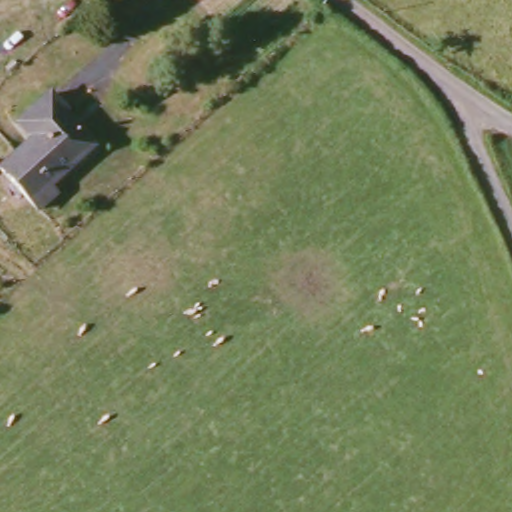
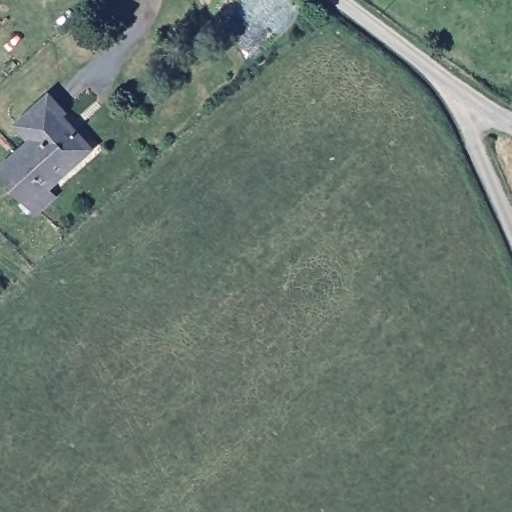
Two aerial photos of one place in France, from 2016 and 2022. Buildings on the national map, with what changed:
unchanged [(72,115),(69,117),(98,149),(56,186),(62,194),(44,209),(6,168),(37,140),(23,124),(54,95),(72,115)]

